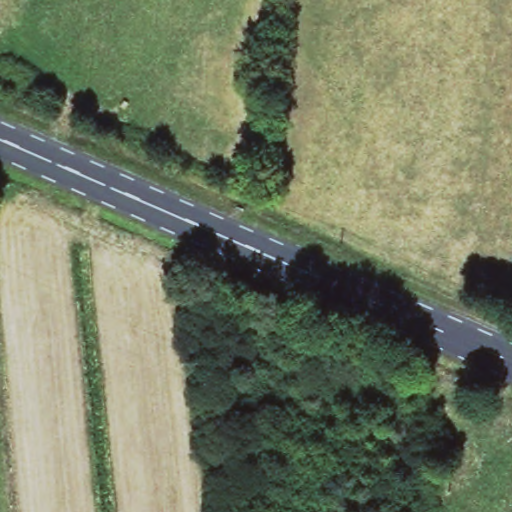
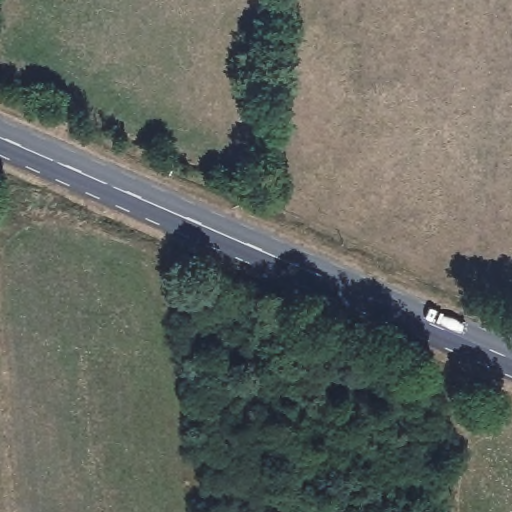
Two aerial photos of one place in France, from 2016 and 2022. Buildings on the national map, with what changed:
[]

